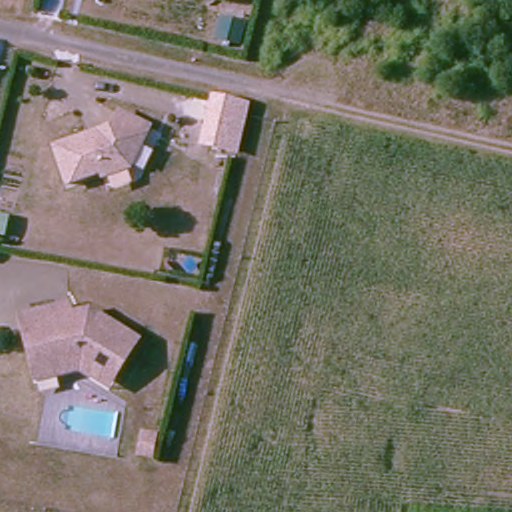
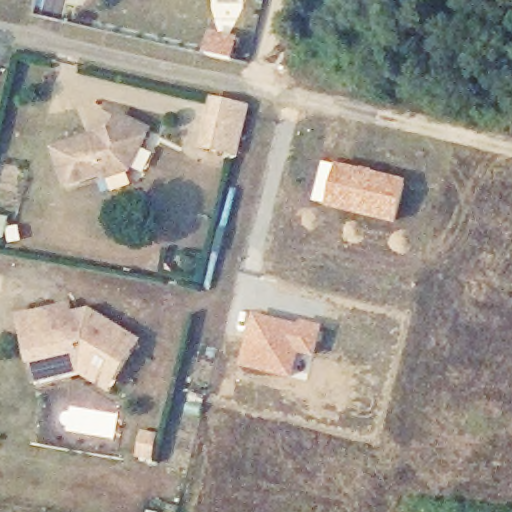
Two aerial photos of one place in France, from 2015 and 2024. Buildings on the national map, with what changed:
unchanged [(237,49),(217,45),(221,25),(241,30),(237,49)]
unchanged [(250,105),(239,157),(199,148),(210,96),(250,105)]
unchanged [(115,116),(145,130),(127,170),(101,180),(100,175),(65,188),(51,152),(84,140),(93,136),(109,130),(115,116)]
new [(335,163),(408,180),(397,225),(323,206),(335,163)]
unchanged [(10,218),(5,239),(0,238),(0,216),(10,218)]
unchanged [(34,380),(31,368),(21,330),(17,315),(41,309),(67,303),(70,312),(86,308),(95,314),(135,336),(115,374),(109,385),(80,368),(34,380)]
new [(256,314),(324,327),(316,360),(300,356),(292,380),(242,367),(256,314)]
unchanged [(157,428),(155,448),(145,446),(147,426),(157,428)]

